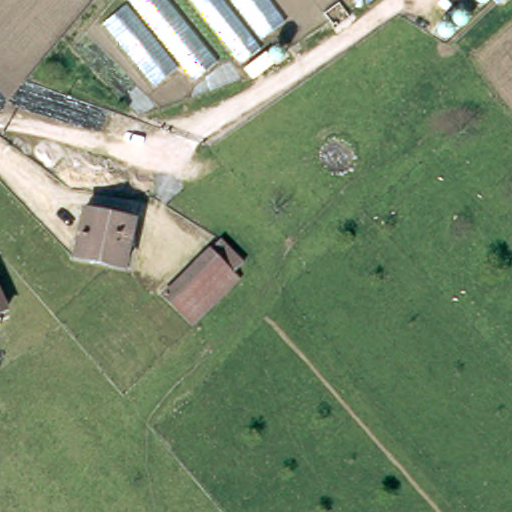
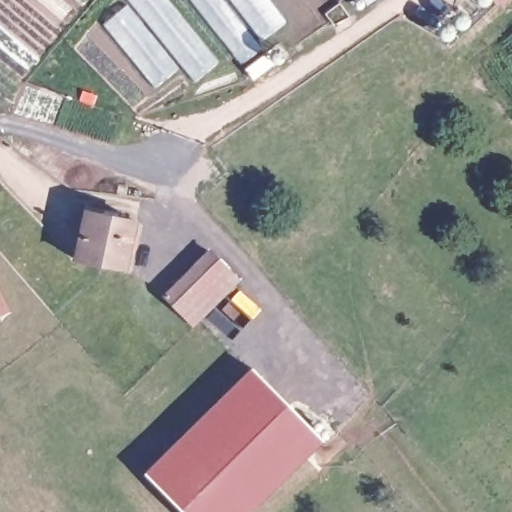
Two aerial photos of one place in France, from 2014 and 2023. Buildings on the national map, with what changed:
unchanged [(187,80),(176,64),(152,84),(100,16),(121,0),(169,0),(215,58),(187,80)]
unchanged [(191,0),(268,0),(281,17),(235,57),(191,0)]
unchanged [(496,3),(494,0),(500,0),(496,3)]
unchanged [(130,220),(117,269),(66,253),(79,206),(130,220)]
unchanged [(235,270),(187,312),(159,282),(206,238),(235,270)]
unchanged [(0,307),(0,296),(5,303),(0,307)]
new [(251,512),(180,512),(140,472),(250,366),(324,440),(251,512)]
demolished [(58,495),(30,512),(9,512),(0,495),(43,468),(58,495)]

